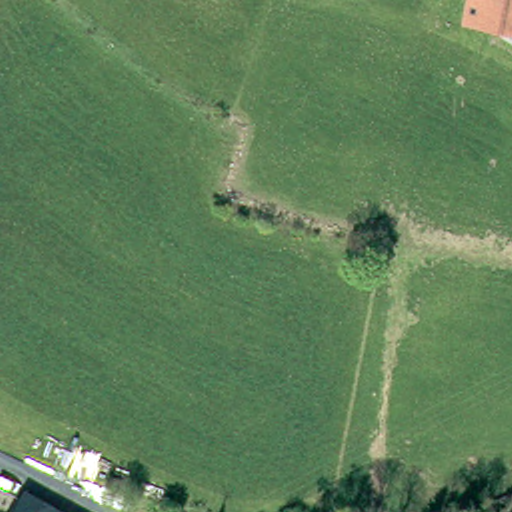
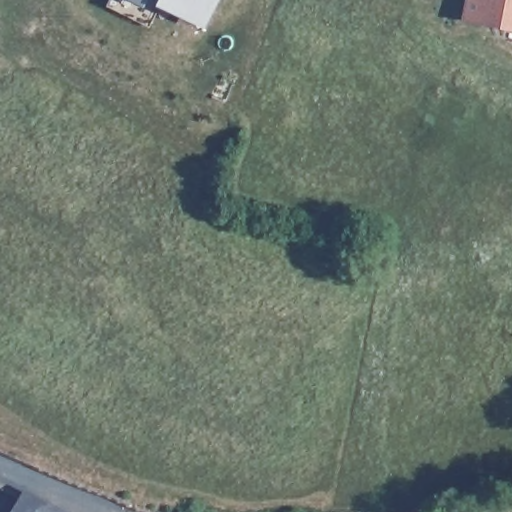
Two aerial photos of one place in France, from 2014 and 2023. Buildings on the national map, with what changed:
new [(144,9),(130,0),(149,0),(144,9)]
new [(207,25),(159,0),(219,0),(207,25)]
unchanged [(471,14),(472,0),(512,0),(512,21),(471,14)]
unchanged [(47,505),(49,501),(71,512),(9,512),(18,491),(47,505)]

